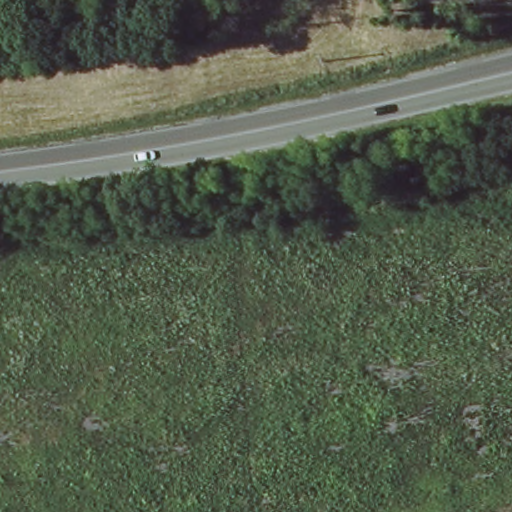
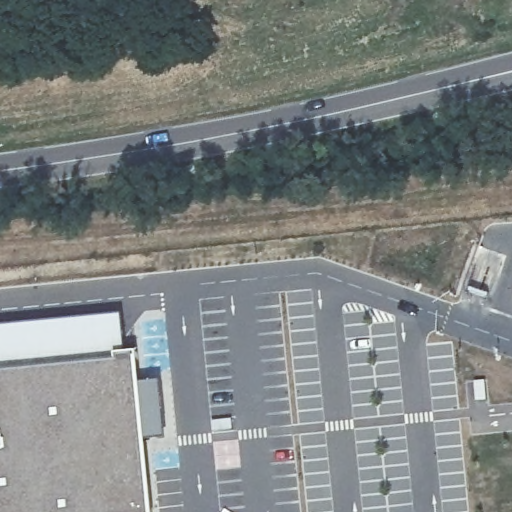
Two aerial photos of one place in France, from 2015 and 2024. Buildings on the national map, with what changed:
new [(121,349),(135,348),(138,380),(158,377),(164,436),(145,440),(150,512),(0,512),(0,324),(119,311),(121,349)]

